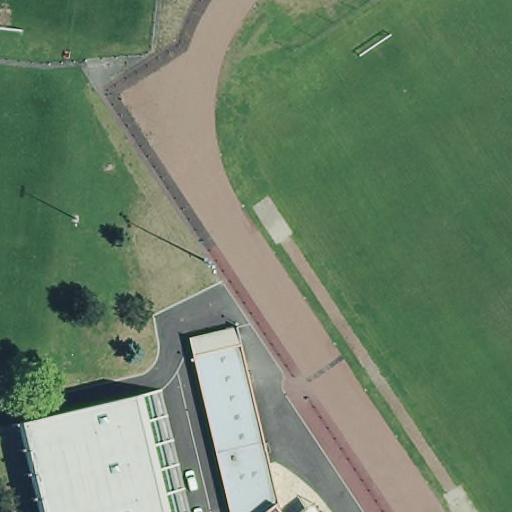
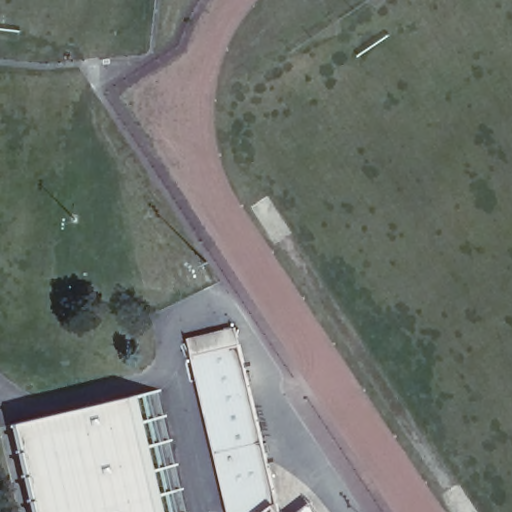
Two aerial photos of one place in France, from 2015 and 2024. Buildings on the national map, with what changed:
unchanged [(188,327),(236,318),(275,502),(268,494),(246,512),(229,512),(188,327)]
unchanged [(13,413),(151,382),(181,512),(36,512),(13,413)]
unchanged [(268,494),(275,502),(282,510),(306,490),(325,512),(246,512),(268,494)]

